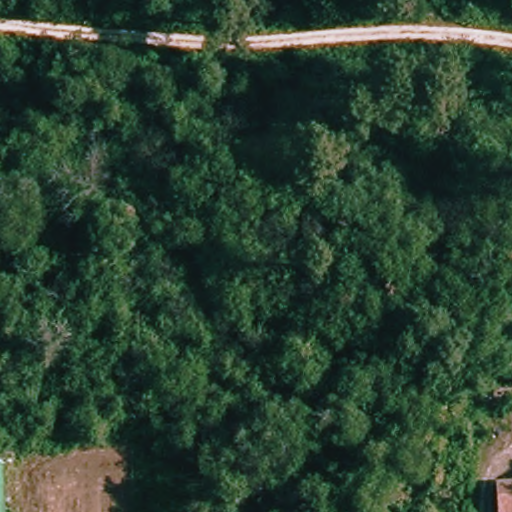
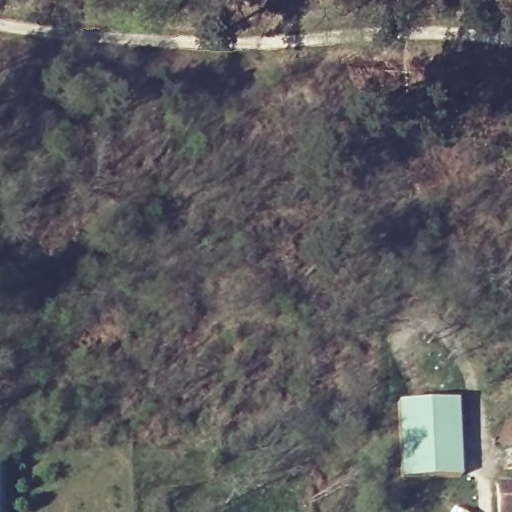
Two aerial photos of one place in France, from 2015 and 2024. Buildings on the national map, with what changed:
new [(395,405),(456,402),(460,477),(399,481),(395,405)]
unchanged [(0,512),(0,459),(8,459),(7,512),(0,512)]
unchanged [(512,483),(512,512),(503,512),(501,485),(512,483)]

